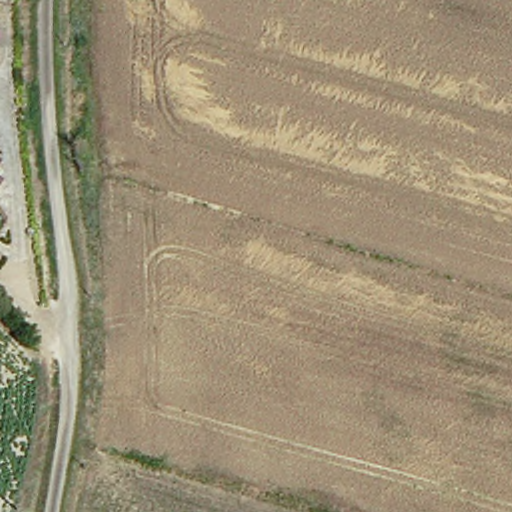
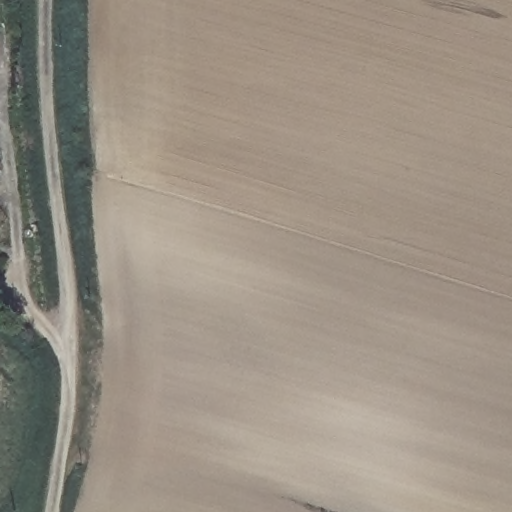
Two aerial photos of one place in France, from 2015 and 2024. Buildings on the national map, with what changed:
unchanged [(0,184),(0,158),(12,168),(0,184)]

